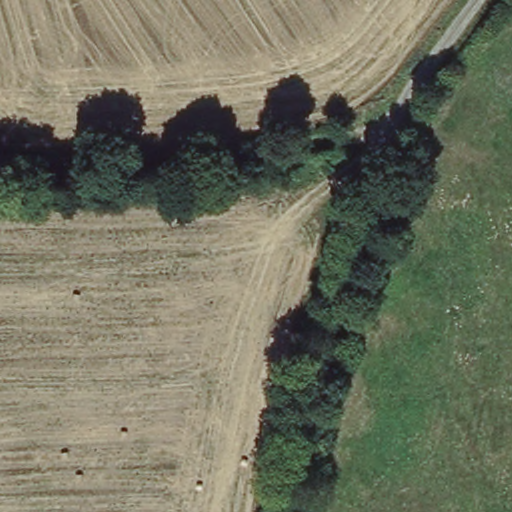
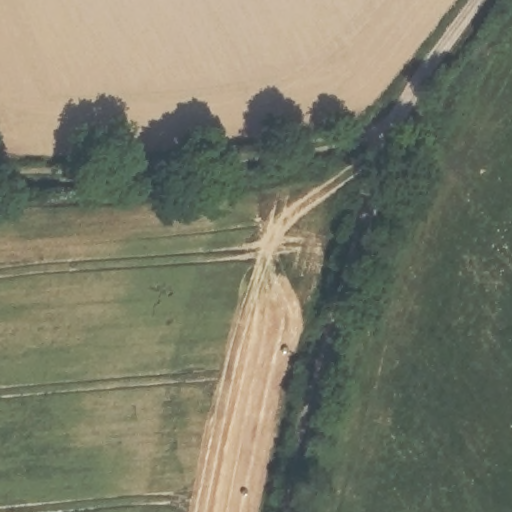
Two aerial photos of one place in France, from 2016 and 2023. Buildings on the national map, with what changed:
[]

